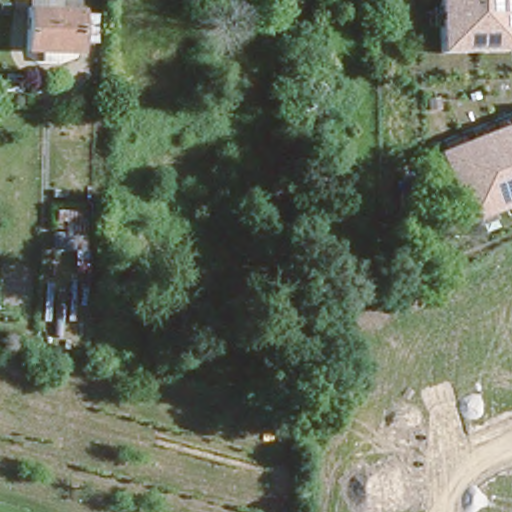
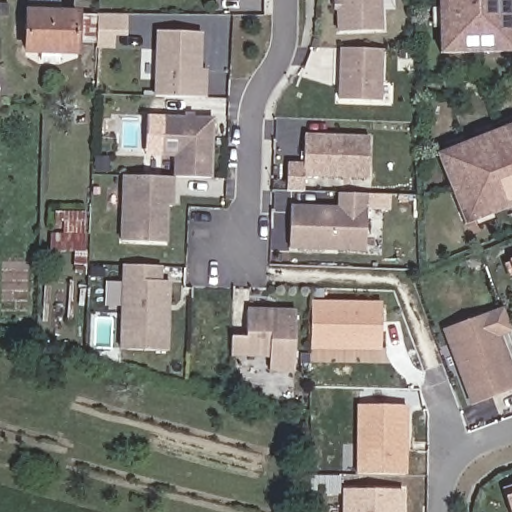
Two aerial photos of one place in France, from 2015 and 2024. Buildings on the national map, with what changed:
new [(336,0),(382,0),(383,31),(337,33),(336,0)]
unchanged [(437,0),(512,0),(512,55),(438,55),(437,0)]
unchanged [(21,46),(22,7),(73,9),(90,9),(89,38),(72,38),(71,48),(21,46)]
new [(101,15),(129,15),(128,34),(117,34),(117,49),(100,48),(100,34),(101,15)]
new [(202,70),(208,70),(207,98),(154,96),(156,31),(203,32),(202,70)]
new [(339,100),(340,48),(383,48),(382,101),(339,100)]
demolished [(330,122),(316,121),(317,97),(331,98),(330,122)]
new [(175,177),(173,177),(174,157),(160,156),(162,116),(215,118),(213,178),(175,177)]
unchanged [(466,228),(436,155),(512,125),(512,209),(466,228)]
new [(305,177),(305,193),(286,192),(287,162),(303,163),(304,133),(370,136),(368,179),(305,177)]
new [(121,242),(122,175),(173,177),(175,177),(174,207),(169,207),(167,243),(121,242)]
new [(289,250),(290,205),(337,206),(338,193),(367,194),(367,251),(289,250)]
unchanged [(84,223),(55,221),(55,211),(85,213),(84,223)]
unchanged [(82,250),(51,250),(52,236),(82,236),(82,250)]
new [(509,259),(512,258),(512,267),(509,259)]
new [(120,350),(121,265),(164,266),(164,281),(172,281),(170,351),(120,350)]
new [(310,351),(310,300),(382,302),(381,352),(310,351)]
new [(470,406),(442,329),(503,307),(512,330),(512,331),(500,336),(512,368),(512,391),(470,406)]
new [(267,372),(268,358),(231,356),(231,337),(246,337),(247,308),(295,310),(293,373),(267,372)]
new [(357,405),(408,406),(407,475),(356,474),(357,405)]
new [(502,488),(512,484),(512,512),(510,512),(502,488)]
new [(404,512),(342,512),(342,490),(405,491),(404,512)]

